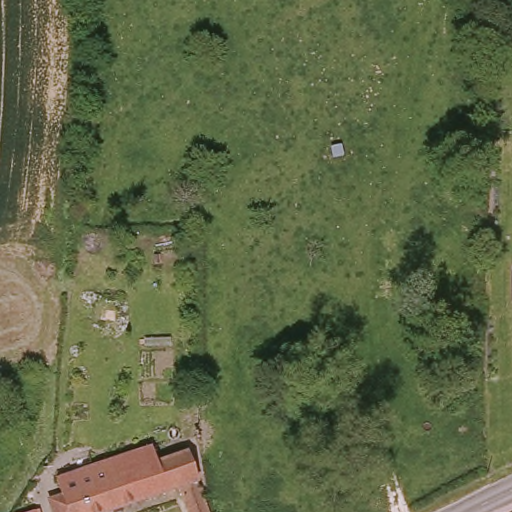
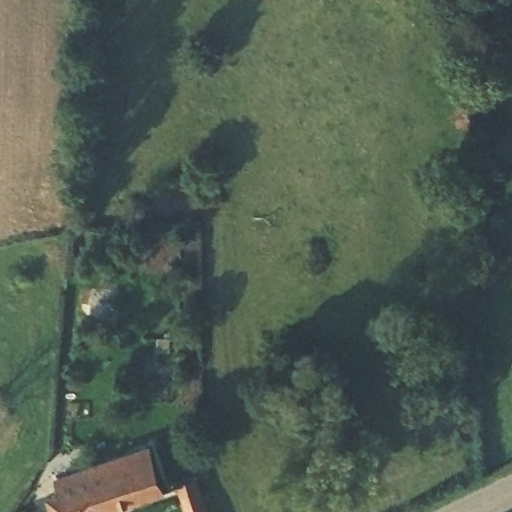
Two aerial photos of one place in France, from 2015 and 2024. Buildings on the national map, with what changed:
unchanged [(126,512),(54,512),(58,510),(63,507),(58,493),(71,487),(154,454),(161,467),(168,465),(187,457),(208,512),(185,512),(176,492),(126,512)]
unchanged [(41,506),(42,512),(19,512),(41,506)]

